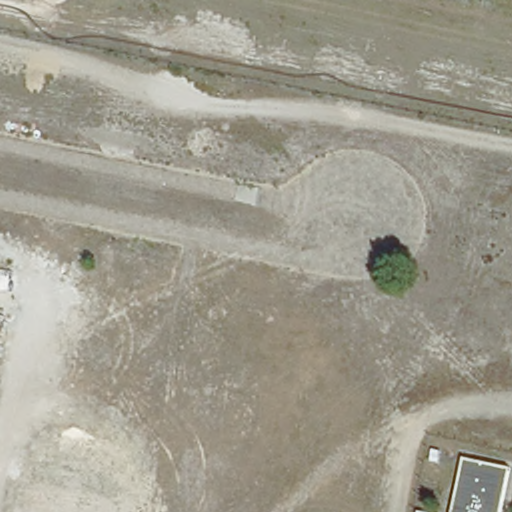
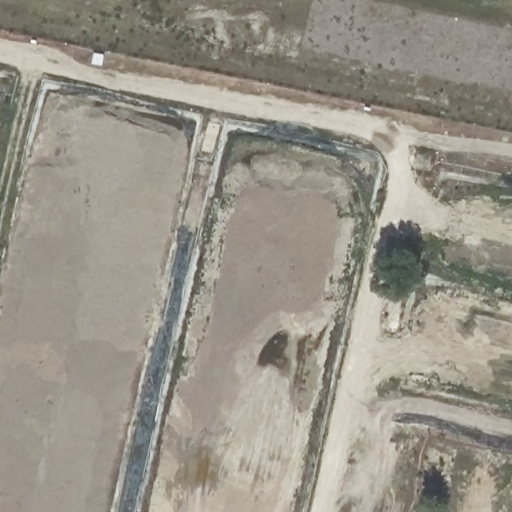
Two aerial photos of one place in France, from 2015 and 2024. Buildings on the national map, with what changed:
demolished [(508,460),(497,512),(447,512),(462,452),(508,460)]

